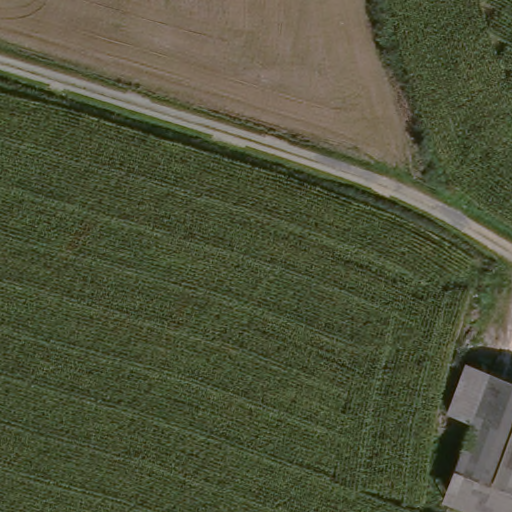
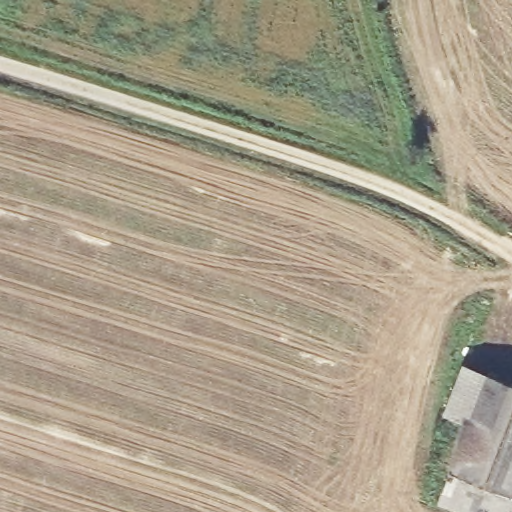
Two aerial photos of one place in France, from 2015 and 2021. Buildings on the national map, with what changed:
unchanged [(465,427),(453,422),(441,418),(456,368),(474,374),(483,378),(465,427)]
unchanged [(448,474),(465,427),(483,378),(512,388),(512,475),(505,493),(448,474)]
unchanged [(448,474),(505,493),(512,475),(512,512),(465,512),(438,503),(448,474)]

